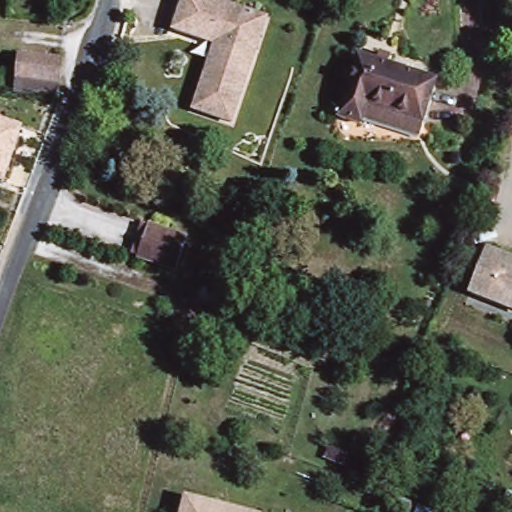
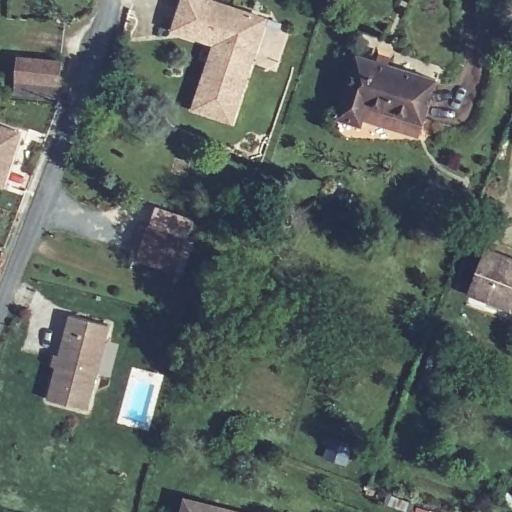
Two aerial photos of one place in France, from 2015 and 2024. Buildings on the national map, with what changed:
unchanged [(207,0),(247,14),(262,20),(251,51),(227,122),(189,110),(207,57),(212,45),(169,30),(180,0),(207,0)]
unchanged [(368,113),(366,118),(338,107),(362,49),(440,79),(424,119),(419,131),(368,113)]
unchanged [(57,55),(53,94),(12,89),(18,50),(57,55)]
unchanged [(0,172),(0,116),(21,123),(4,173),(0,172)]
unchanged [(135,250),(145,221),(183,236),(173,263),(135,250)]
unchanged [(486,248),(512,258),(512,306),(470,290),(486,248)]
new [(111,325),(90,409),(46,398),(68,314),(111,325)]
unchanged [(186,493),(209,498),(256,512),(181,512),(186,493)]

